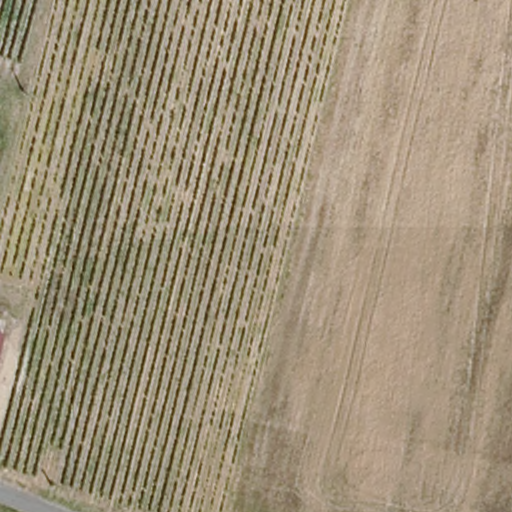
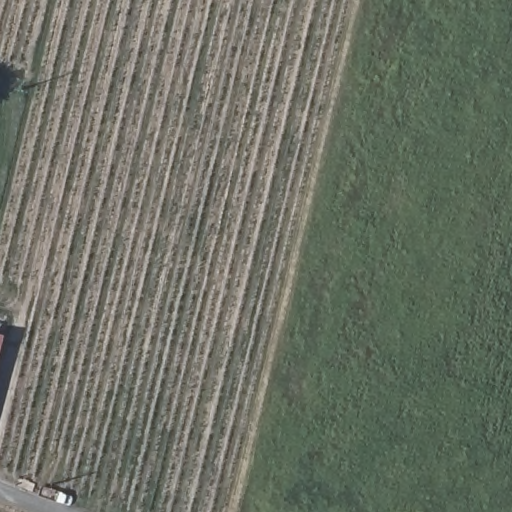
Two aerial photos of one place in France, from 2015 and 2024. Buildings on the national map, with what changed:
unchanged [(0,334),(4,335),(0,349),(0,334)]

